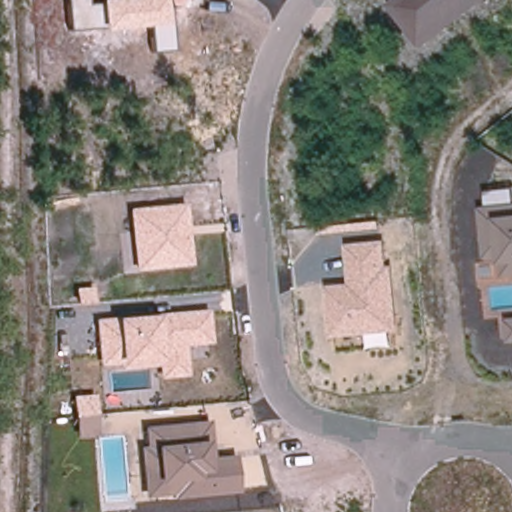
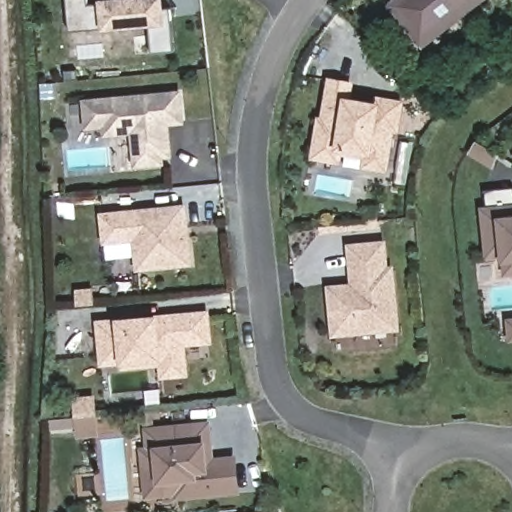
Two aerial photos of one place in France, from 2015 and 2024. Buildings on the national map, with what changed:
unchanged [(148,25),(103,29),(70,31),(68,0),(85,0),(85,4),(99,4),(99,0),(163,0),(163,9),(170,9),(174,51),(152,53),(148,25)]
unchanged [(388,4),(393,0),(483,0),(420,48),(388,4)]
new [(356,98),(376,101),(377,95),(405,99),(400,132),(395,132),(390,172),(363,169),(364,158),(342,156),(341,164),(311,159),(317,116),(322,116),(329,78),(355,81),(356,98)]
new [(105,136),(105,128),(87,129),(84,99),(182,90),(186,124),(170,126),(174,156),(164,158),(164,164),(134,168),(130,134),(105,136)]
unchanged [(502,261),(483,260),(480,207),(486,206),(485,191),(512,188),(512,275),(503,276),(502,261)]
unchanged [(135,272),(129,208),(186,203),(191,265),(135,272)]
new [(132,241),(101,245),(99,213),(129,208),(132,241)]
unchanged [(393,265),(398,330),(331,337),(325,285),(350,283),(346,244),(385,240),(387,266),(393,265)]
unchanged [(187,377),(160,379),(159,367),(121,370),(121,364),(100,366),(95,320),(115,318),(157,313),(207,309),(210,343),(185,346),(187,377)]
unchanged [(507,343),(506,318),(512,317),(512,342),(507,343)]
new [(83,434),(82,428),(81,414),(80,414),(79,399),(95,397),(97,412),(99,426),(99,432),(83,434)]
unchanged [(235,455),(239,493),(175,499),(175,495),(145,497),(140,448),(145,447),(144,427),(210,421),(212,457),(235,455)]

